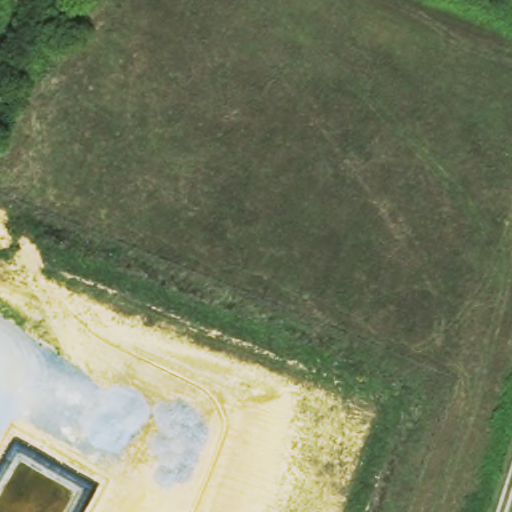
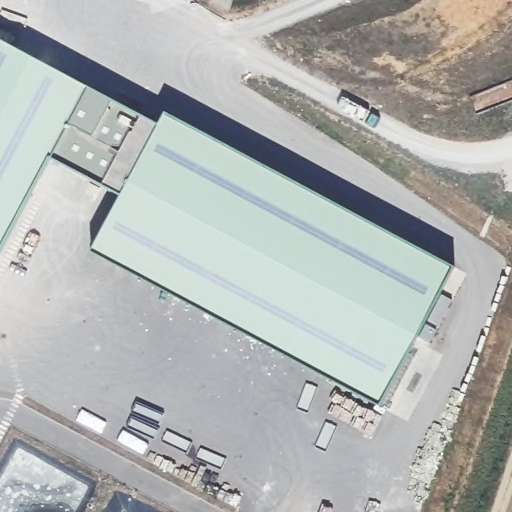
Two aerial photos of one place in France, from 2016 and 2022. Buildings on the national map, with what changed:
new [(160,126),(167,111),(454,265),(380,404),(94,250),(121,200),(49,164),(0,255),(0,39),(160,126)]

